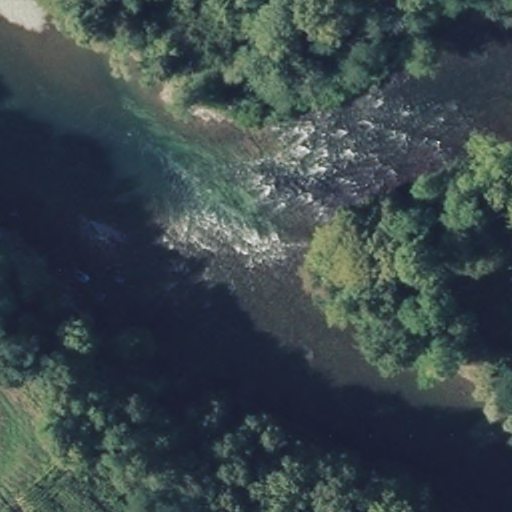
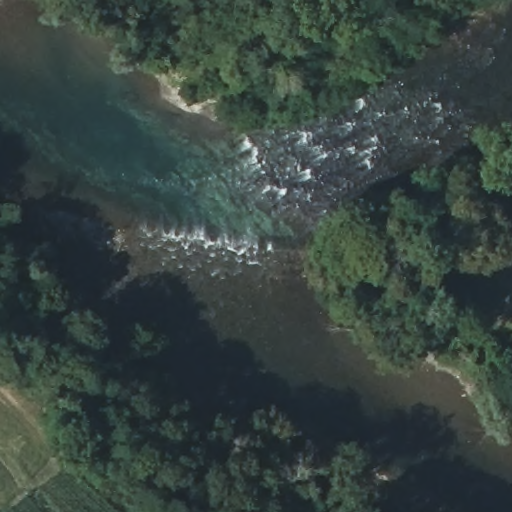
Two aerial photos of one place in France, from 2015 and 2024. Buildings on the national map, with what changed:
[]

